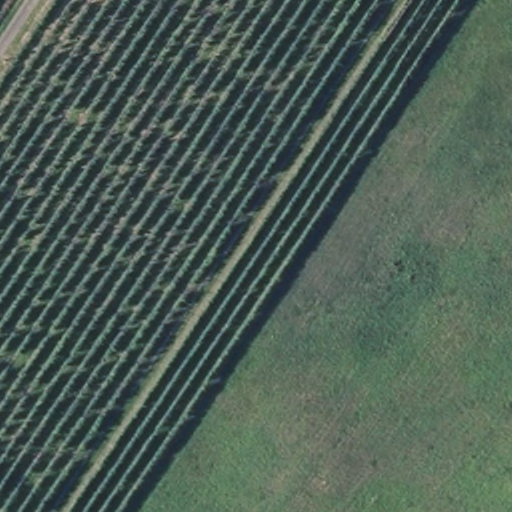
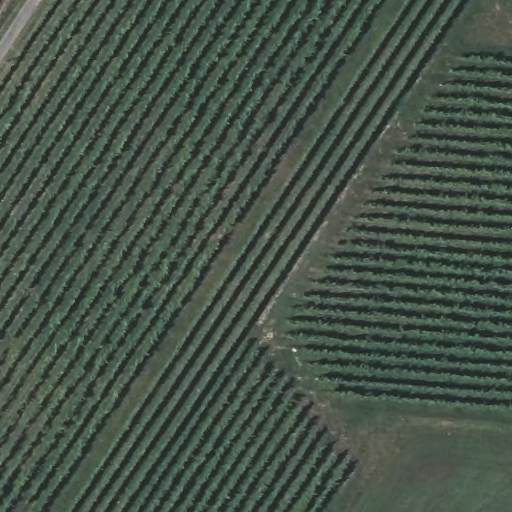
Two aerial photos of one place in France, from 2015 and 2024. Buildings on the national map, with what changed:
[]

